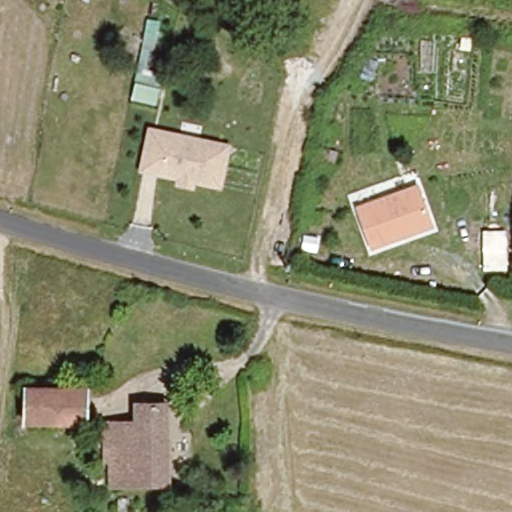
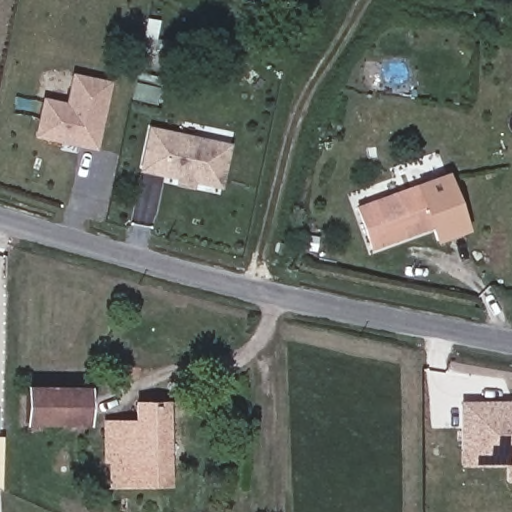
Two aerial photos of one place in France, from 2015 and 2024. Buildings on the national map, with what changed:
new [(43,97),(65,102),(71,73),(111,81),(96,152),(35,139),(43,97)]
unchanged [(150,128),(234,145),(223,190),(198,185),(196,191),(176,186),(178,180),(140,172),(150,128)]
new [(445,175),(466,232),(435,244),(428,229),(413,187),(445,175)]
unchanged [(413,187),(428,229),(364,252),(348,210),(413,187)]
unchanged [(85,392),(83,426),(25,421),(27,387),(85,392)]
new [(463,406),(512,403),(512,480),(509,481),(507,466),(464,464),(463,406)]
unchanged [(168,487),(136,487),(136,463),(136,427),(136,406),(168,406),(168,487)]
unchanged [(104,463),(104,427),(136,427),(136,463),(104,463)]
new [(2,438),(0,490),(0,438),(2,438)]

